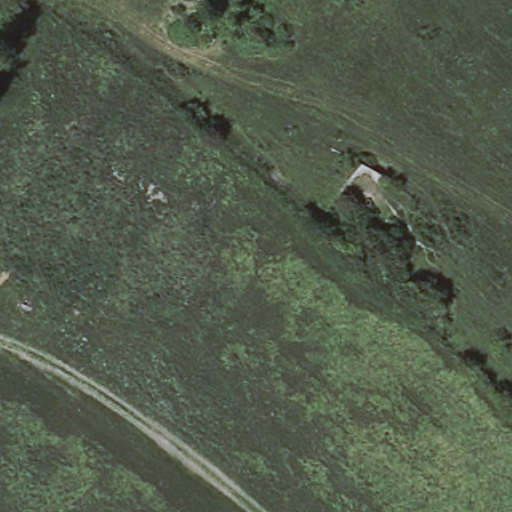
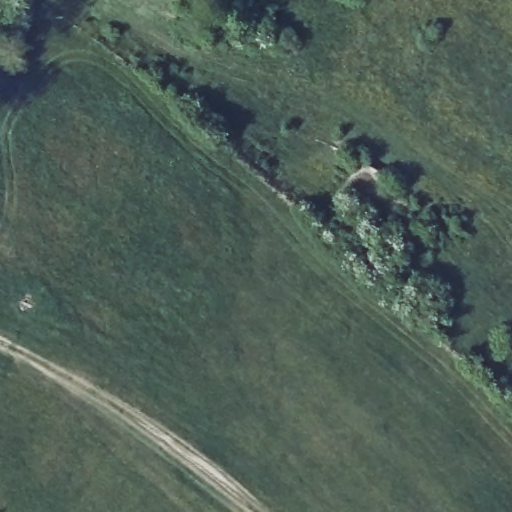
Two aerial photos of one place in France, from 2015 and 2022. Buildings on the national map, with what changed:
unchanged [(227,10),(219,21),(225,25),(220,31),(215,28),(213,30),(193,16),(204,0),(213,0),(227,10)]
unchanged [(362,163),(387,175),(363,208),(340,192),(362,163)]

